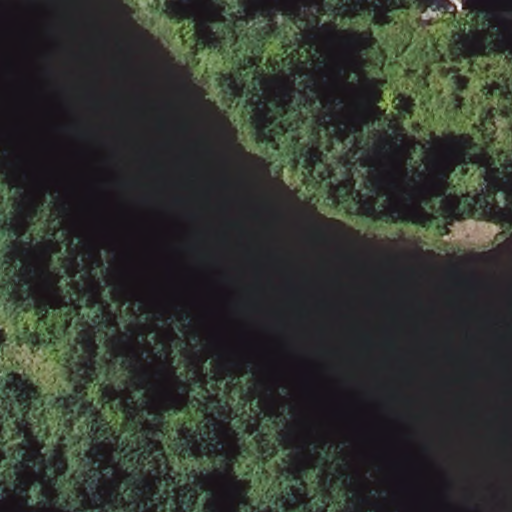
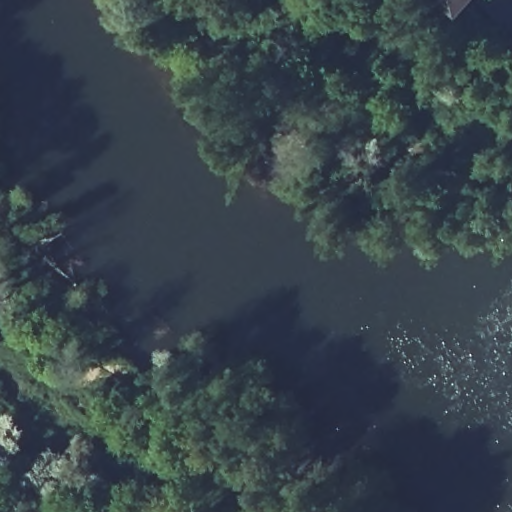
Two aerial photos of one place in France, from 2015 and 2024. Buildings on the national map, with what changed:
unchanged [(395,9),(404,0),(472,0),(432,43),(395,9)]

